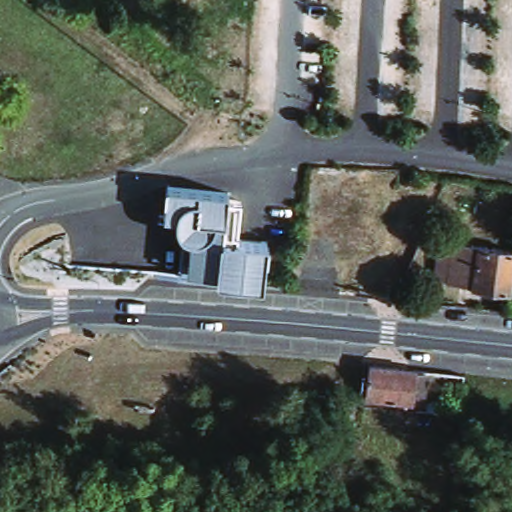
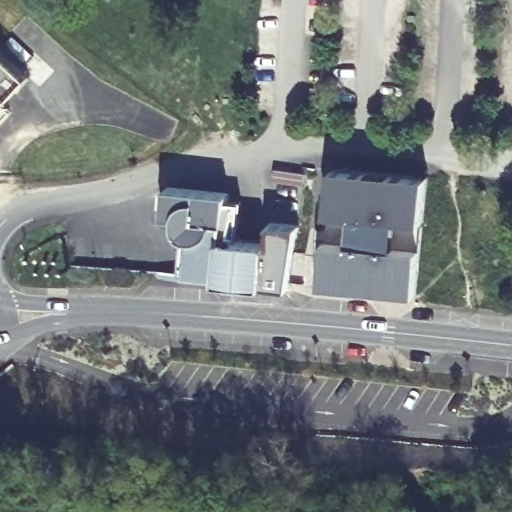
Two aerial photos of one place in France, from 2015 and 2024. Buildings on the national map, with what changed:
new [(9,97),(0,107),(0,50),(28,75),(9,97)]
new [(321,286),(326,238),(328,212),(333,167),(428,175),(423,222),(420,247),(416,295),(321,286)]
unchanged [(190,226),(169,224),(173,194),(234,201),(233,208),(247,209),(242,248),(273,251),(268,295),(223,289),(223,286),(184,282),(190,226)]
demolished [(425,226),(419,242),(421,225),(425,226)]
demolished [(512,278),(510,294),(448,286),(453,245),(512,254),(512,278)]
demolished [(410,374),(407,403),(360,398),(363,368),(410,374)]

